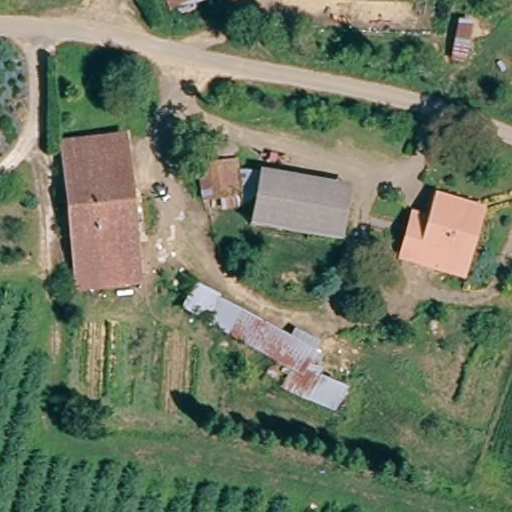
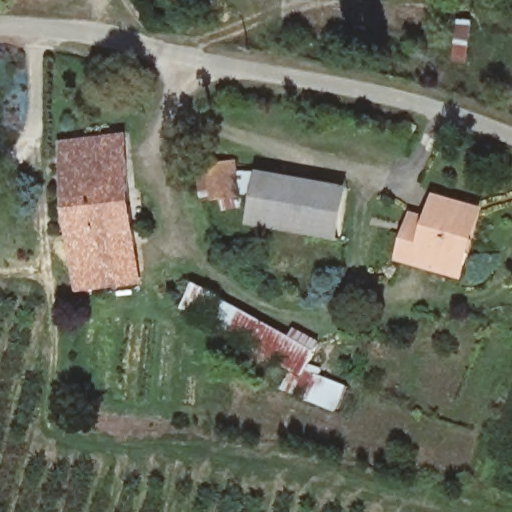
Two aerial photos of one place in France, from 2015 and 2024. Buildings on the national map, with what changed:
unchanged [(75,285),(71,249),(61,142),(124,137),(134,283),(75,285)]
unchanged [(233,189),(209,192),(207,151),(230,150),(233,189)]
unchanged [(332,238),(256,220),(246,217),(257,169),(271,172),(344,188),(332,238)]
unchanged [(403,234),(422,238),(431,203),(467,209),(459,247),(467,249),(461,273),(398,259),(403,234)]
unchanged [(235,304),(316,357),(299,380),(225,333),(217,328),(232,309),(235,304)]

